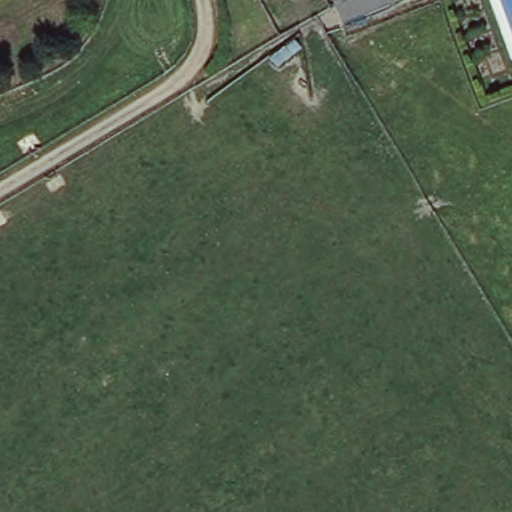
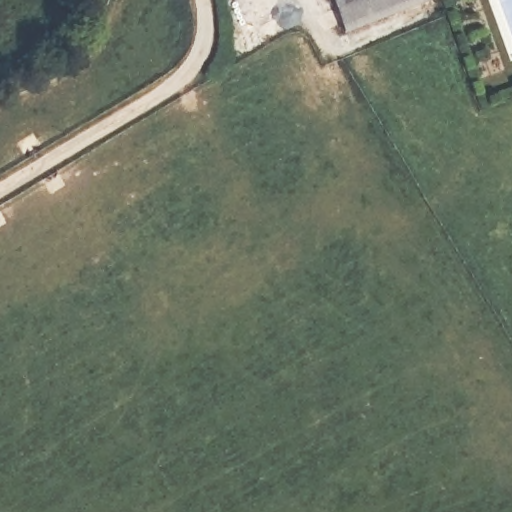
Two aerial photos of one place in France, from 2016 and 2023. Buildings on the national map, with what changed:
unchanged [(346,28),(335,0),(418,0),(346,28)]

